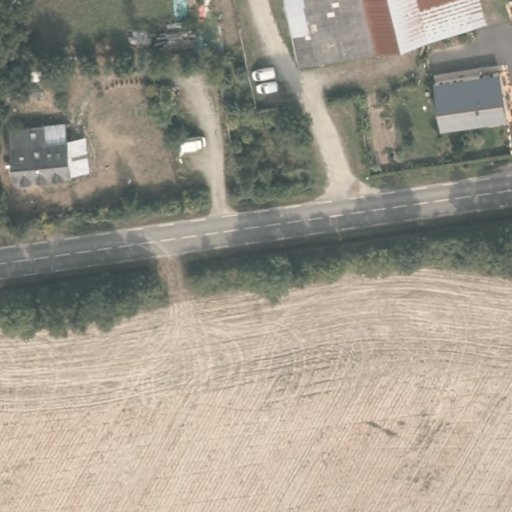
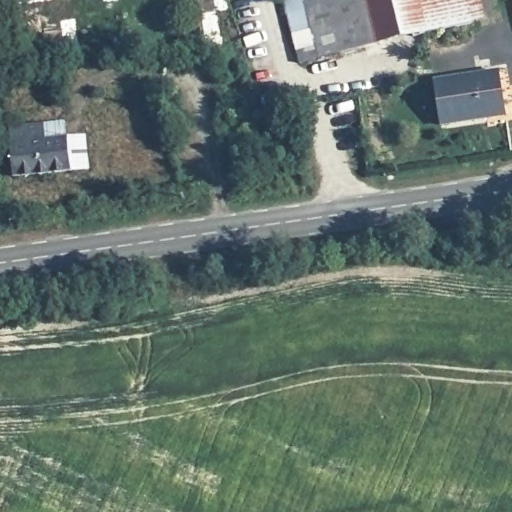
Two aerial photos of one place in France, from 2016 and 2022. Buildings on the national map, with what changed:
unchanged [(296,35),(317,28),(310,0),(373,0),(383,44),(302,61),(296,35)]
unchanged [(373,0),(470,0),(475,22),(430,32),(383,44),(373,0)]
unchanged [(502,70),(510,114),(444,124),(437,80),(502,70)]
unchanged [(91,171),(72,174),(19,181),(12,132),(66,125),(69,140),(86,137),(91,171)]

